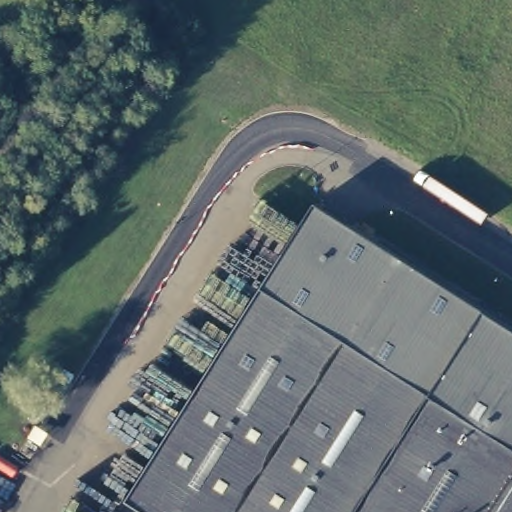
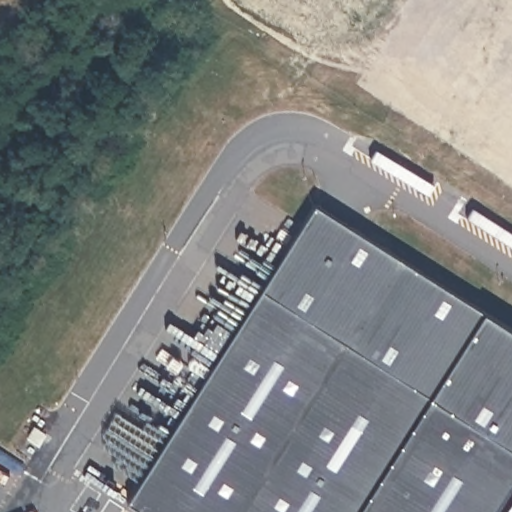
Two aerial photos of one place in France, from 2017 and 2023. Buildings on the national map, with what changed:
unchanged [(257,292),(310,207),(512,335),(512,512),(133,512),(122,505),(257,292)]

